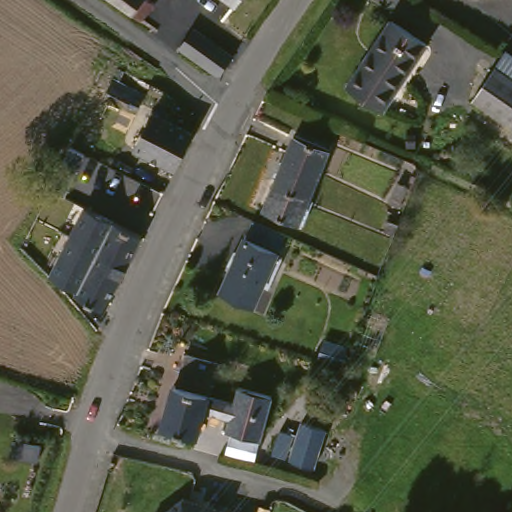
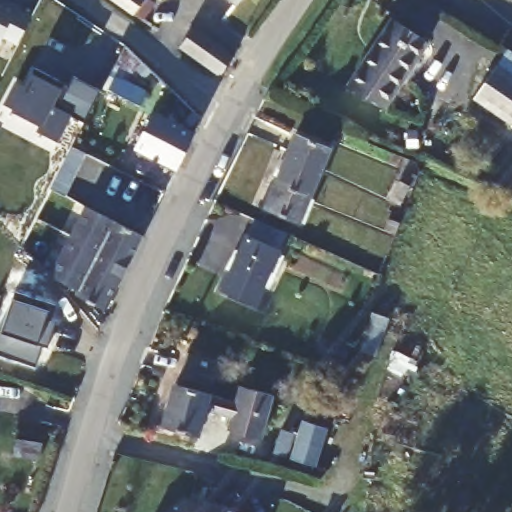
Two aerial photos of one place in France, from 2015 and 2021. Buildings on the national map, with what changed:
new [(0,40),(0,0),(6,0),(18,6),(17,8),(31,15),(16,44),(2,36),(0,40)]
unchanged [(156,0),(162,4),(151,19),(122,0),(156,0)]
unchanged [(432,46),(387,112),(351,89),(396,21),(432,46)]
unchanged [(232,70),(224,72),(187,45),(201,26),(242,54),(232,70)]
unchanged [(505,59),(512,64),(512,113),(483,94),(505,59)]
unchanged [(122,68),(117,78),(142,89),(136,102),(104,87),(115,64),(122,68)]
new [(36,133),(41,127),(11,113),(12,109),(4,106),(15,83),(23,89),(32,72),(61,88),(63,84),(68,87),(72,78),(99,91),(82,123),(71,116),(57,143),(36,133)]
unchanged [(157,113),(198,131),(190,148),(181,165),(140,146),(157,113)]
unchanged [(335,152),(304,225),(268,209),(300,136),(335,152)]
unchanged [(59,169),(71,143),(87,149),(74,177),(66,193),(51,186),(59,169)]
unchanged [(408,187),(397,208),(387,201),(397,181),(408,187)]
unchanged [(82,203),(146,234),(109,309),(108,310),(81,297),(84,290),(52,274),(82,203)]
unchanged [(284,245),(262,299),(230,284),(252,230),(284,245)]
new [(0,331),(2,332),(13,300),(47,312),(49,304),(55,306),(51,320),(56,322),(48,348),(42,346),(35,367),(0,354),(0,331)]
unchanged [(356,343),(350,363),(326,355),(332,335),(356,343)]
unchanged [(234,422),(214,417),(207,439),(169,428),(180,389),(184,385),(192,356),(229,366),(219,398),(241,404),(234,422)]
unchanged [(279,398),(267,441),(234,433),(236,423),(234,422),(241,404),(247,389),(279,398)]
unchanged [(297,464),(309,426),(333,434),(321,472),(297,464)]
unchanged [(298,442),(292,463),(279,459),(287,437),(298,442)]
unchanged [(187,501),(232,512),(172,512),(187,501)]

